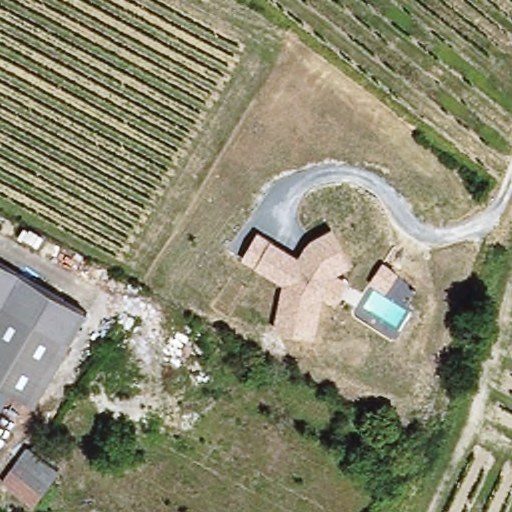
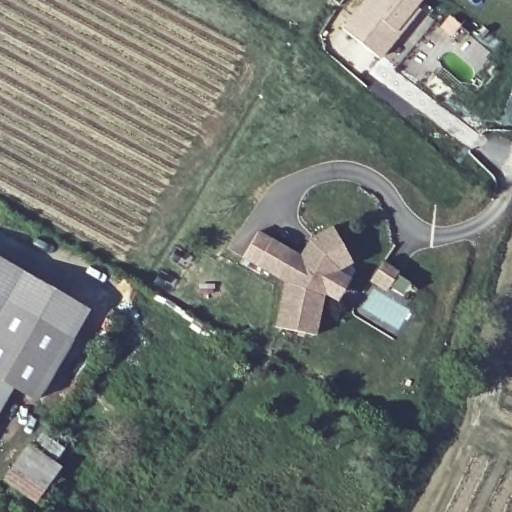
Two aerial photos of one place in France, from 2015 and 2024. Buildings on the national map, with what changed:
new [(419,10),(380,60),(342,29),(367,0),(420,0),(415,6),(419,10)]
unchanged [(283,282),(242,259),(258,232),(300,254),(307,239),(333,225),(353,264),(338,270),(351,277),(339,303),(325,295),(318,334),(276,328),(283,282)]
unchanged [(401,270),(388,293),(367,280),(382,258),(401,270)]
unchanged [(56,365),(0,336),(0,260),(86,305),(56,365)]
unchanged [(16,375),(0,404),(0,336),(56,365),(42,389),(16,375)]
unchanged [(4,483),(25,449),(55,468),(34,502),(4,483)]

